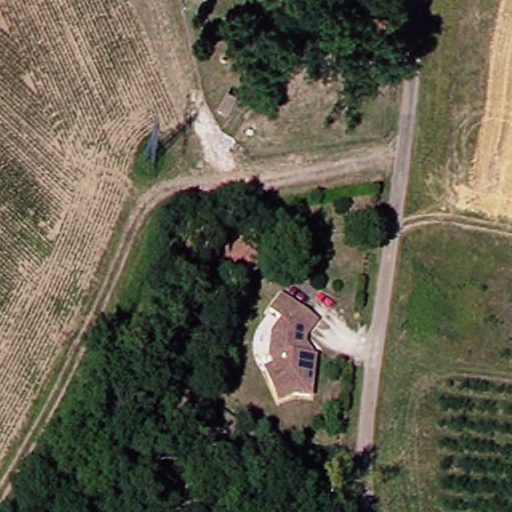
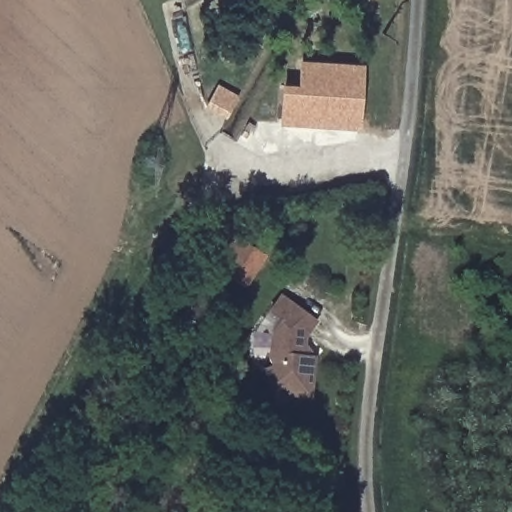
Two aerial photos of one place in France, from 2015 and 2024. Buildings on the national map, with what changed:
new [(286,87),(302,87),(303,62),(363,64),(361,125),(285,122),(286,87)]
unchanged [(325,329),(311,342),(310,354),(322,355),(317,397),(296,396),(279,401),(267,370),(278,367),(277,339),(290,327),(280,313),(297,300),(325,329)]

